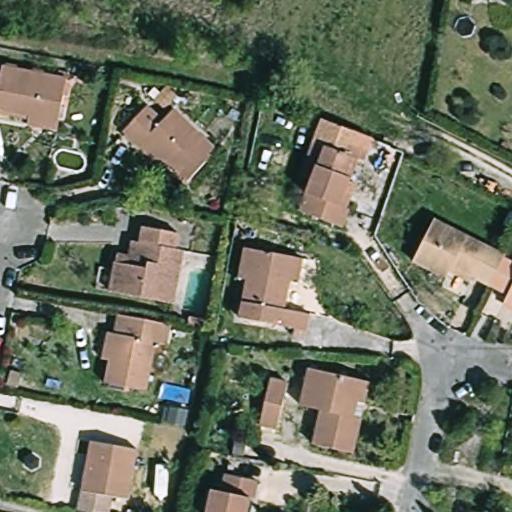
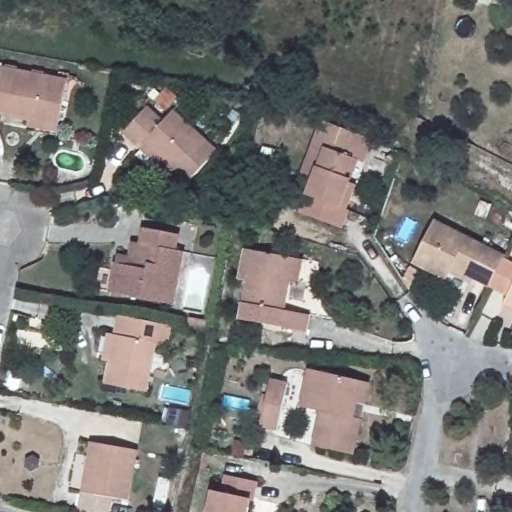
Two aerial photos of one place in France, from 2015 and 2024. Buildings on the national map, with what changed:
unchanged [(32,126),(34,117),(0,110),(0,77),(5,77),(7,67),(72,80),(64,122),(62,132),(32,126)]
unchanged [(186,184),(164,162),(160,167),(123,132),(146,107),(162,122),(173,110),(216,151),(186,184)]
unchanged [(349,182),(355,185),(346,209),(349,210),(341,229),(299,212),(310,182),(299,178),(313,142),(317,144),(358,160),(349,182)]
unchanged [(496,273),(489,287),(471,278),(469,283),(449,272),(446,280),(412,263),(434,220),(504,256),(496,273)]
unchanged [(178,305),(114,292),(121,255),(134,258),(137,241),(144,243),(147,227),(184,235),(181,250),(188,252),(178,305)]
unchanged [(302,284),(294,282),(289,310),(314,315),(310,339),(297,336),(298,329),(245,320),(252,280),(245,278),(251,249),(258,250),(307,260),(302,284)]
unchanged [(512,285),(512,308),(503,303),(512,285)]
unchanged [(109,379),(113,356),(107,355),(112,328),(119,329),(123,310),(138,313),(164,318),(151,387),(109,379)]
unchanged [(207,321),(205,331),(187,328),(188,318),(207,321)]
unchanged [(353,455),(312,445),(320,411),(299,407),(308,368),(369,383),(353,455)]
unchanged [(277,430),(259,427),(270,379),(288,383),(277,430)]
unchanged [(112,497),(109,512),(87,512),(79,510),(90,442),(138,450),(129,500),(112,497)]
unchanged [(211,512),(216,490),(226,492),(230,475),(262,482),(258,501),(255,500),(252,512),(211,512)]

